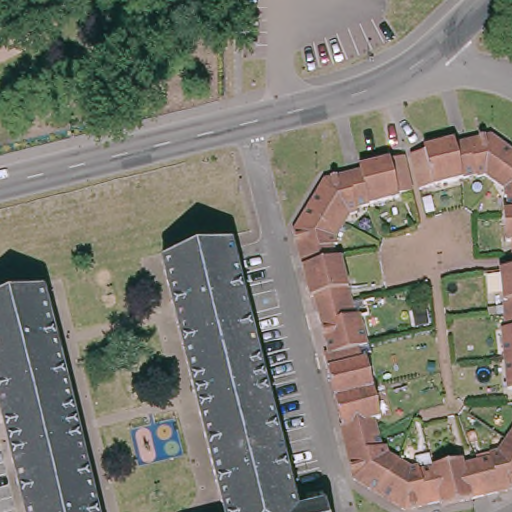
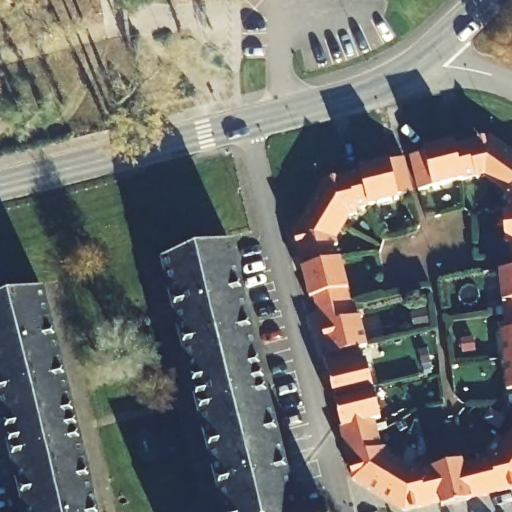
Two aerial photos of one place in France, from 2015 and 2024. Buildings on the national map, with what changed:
unchanged [(474,184),(462,187),(419,198),(410,161),(421,159),(425,158),(424,154),(454,146),(455,151),(469,148),(490,144),(512,159),(512,259),(510,259),(508,246),(504,247),(501,218),(507,217),(505,205),(502,204),(502,197),(492,190),(484,185),(475,187),(474,184)]
unchanged [(309,299),(302,271),(294,234),(310,210),(324,186),(360,178),(359,173),(390,165),(390,167),(404,164),(412,199),(398,203),(399,207),(369,214),(355,218),(357,221),(350,223),(345,232),(339,241),(340,247),(337,248),(340,262),(345,261),(355,307),(358,320),(362,319),(369,347),(360,349),(363,364),(369,362),(376,392),(383,420),(376,422),(380,437),(384,451),(387,450),(388,456),(401,464),(413,472),(418,472),(419,476),(419,478),(432,475),(460,468),(462,472),(477,468),(487,465),(487,461),(495,459),(505,446),(512,435),(512,495),(485,502),(445,512),(441,512),(440,509),(426,512),(396,512),(378,501),(351,483),(342,447),(337,432),(341,431),(334,402),(323,358),(327,357),(317,316),(313,298),(309,299)]
unchanged [(233,246),(299,512),(225,512),(165,262),(233,246)]
unchanged [(504,365),(501,336),(507,335),(505,321),(502,276),(512,275),(512,392),(506,393),(504,365)]
unchanged [(45,297),(98,512),(25,512),(0,409),(0,308),(45,297)]
unchanged [(327,507),(329,512),(303,512),(327,507)]

